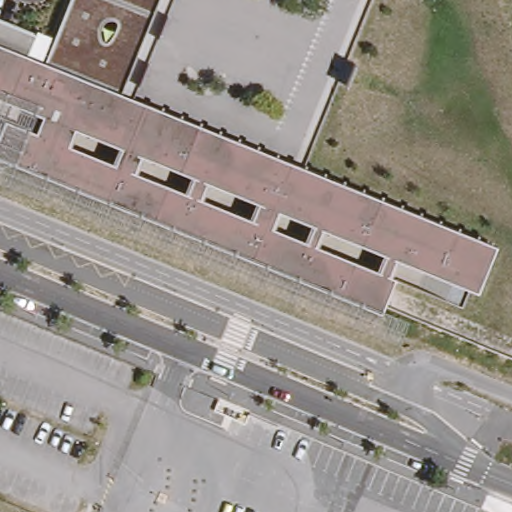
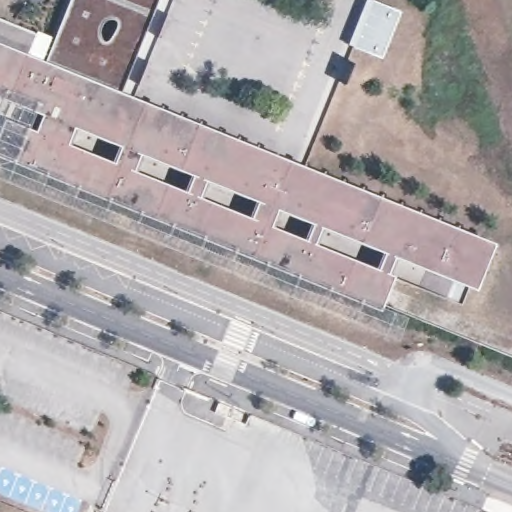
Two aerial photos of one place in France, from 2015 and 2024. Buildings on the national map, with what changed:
unchanged [(29,49),(50,56),(74,0),(171,0),(134,93),(496,240),(480,287),(402,255),(394,271),(398,274),(384,305),(0,152),(0,142),(11,115),(40,128),(48,110),(0,91),(0,16),(36,31),(29,49)]
new [(382,58),(348,44),(365,0),(374,0),(401,11),(382,58)]
new [(0,142),(0,114),(10,118),(0,142)]

